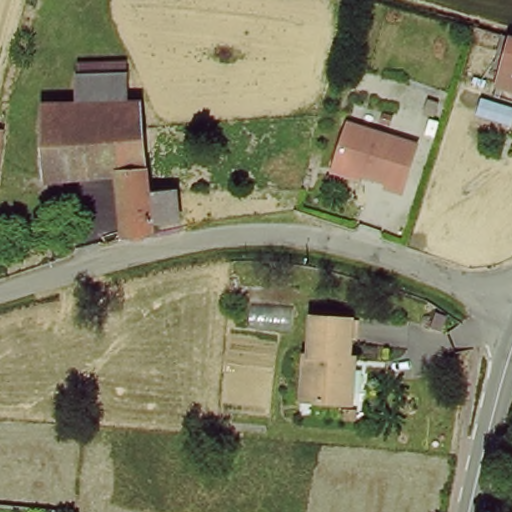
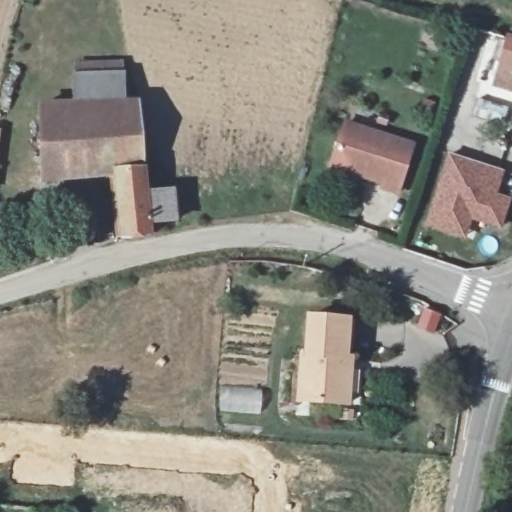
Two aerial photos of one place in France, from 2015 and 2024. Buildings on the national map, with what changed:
unchanged [(512,37),(512,89),(493,85),(507,35),(512,37)]
unchanged [(153,219),(154,229),(154,232),(134,233),(128,234),(120,173),(75,176),(48,177),(46,146),(44,102),(80,102),(79,76),(83,75),(82,61),(125,60),(125,72),(126,99),(132,99),(141,99),(143,123),(149,183),(149,187),(150,190),(177,188),(180,217),(153,219)]
unchanged [(512,101),(512,123),(511,126),(474,115),(482,94),(512,101)]
unchanged [(408,140),(393,187),(377,182),(379,177),(326,161),(339,118),(408,140)]
unchanged [(6,145),(3,170),(0,182),(0,126),(8,128),(6,145)]
new [(507,172),(499,194),(512,199),(502,231),(474,221),(467,239),(424,227),(448,153),(507,172)]
unchanged [(306,360),(310,318),(347,322),(344,363),(353,364),(348,406),(310,402),(301,402),(306,360)]

